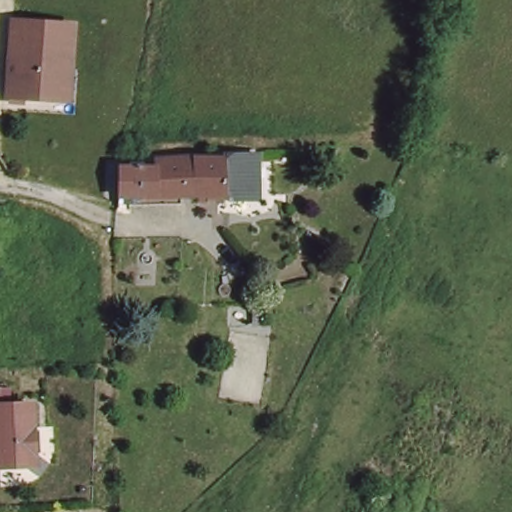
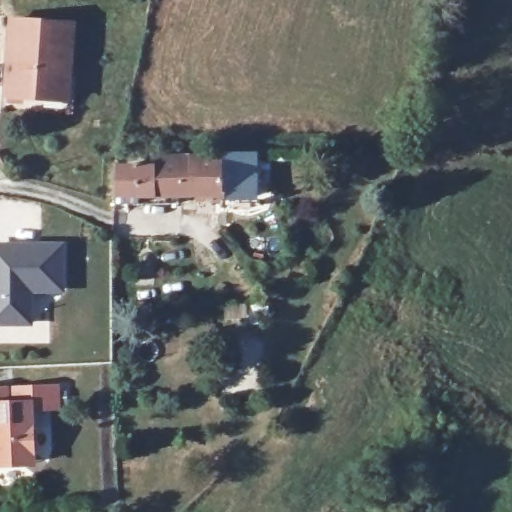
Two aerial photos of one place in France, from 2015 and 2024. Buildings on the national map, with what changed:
unchanged [(7,92),(15,17),(73,24),(67,90),(66,104),(26,100),(27,94),(7,92)]
unchanged [(230,197),(116,194),(122,169),(160,170),(160,162),(228,162),(227,152),(255,154),(256,199),(230,197)]
new [(31,293),(31,327),(0,327),(0,243),(65,243),(64,294),(31,293)]
unchanged [(32,449),(21,464),(0,464),(0,403),(32,403),(32,449)]

